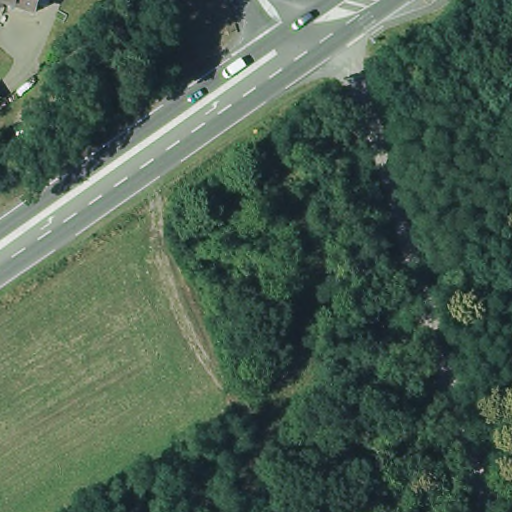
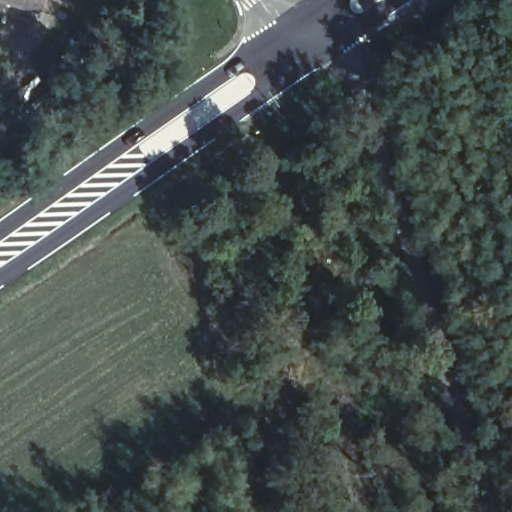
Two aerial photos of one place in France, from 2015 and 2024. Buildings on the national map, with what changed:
unchanged [(11,2),(2,0),(12,0),(11,2)]
unchanged [(42,11),(11,2),(12,0),(46,0),(42,11)]

